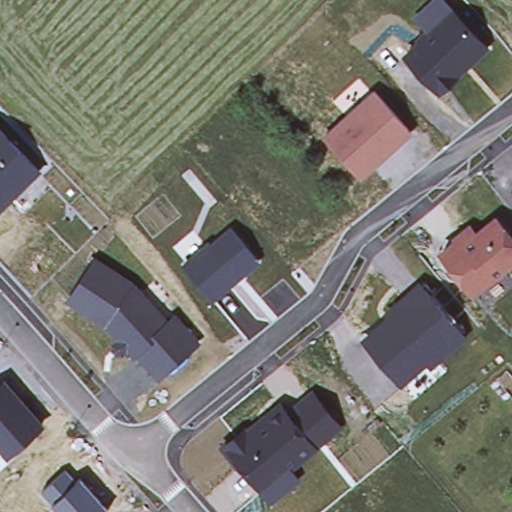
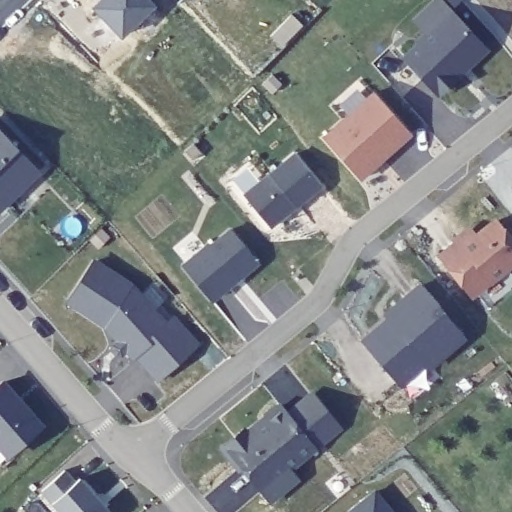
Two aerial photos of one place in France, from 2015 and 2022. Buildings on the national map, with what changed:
new [(156,7),(122,42),(93,11),(104,0),(149,0),(156,7)]
unchanged [(435,0),(441,0),(491,52),(440,97),(400,55),(425,33),(412,19),(435,0)]
new [(302,27),(282,48),(272,38),(292,16),(302,27)]
unchanged [(372,90),(412,136),(357,180),(322,135),(372,90)]
unchanged [(0,212),(0,129),(42,173),(0,212)]
new [(295,152),(322,184),(297,205),(294,202),(287,208),(290,211),(272,226),(245,194),(295,152)]
unchanged [(512,237),(512,267),(474,298),(437,252),(452,241),(448,236),(467,222),(477,232),(495,217),(512,237)]
unchanged [(230,226),(260,264),(212,302),(182,265),(230,226)]
unchanged [(97,256),(133,279),(170,319),(180,313),(202,342),(155,382),(106,329),(67,302),(97,256)]
unchanged [(385,318),(380,315),(419,285),(463,340),(431,369),(426,364),(397,387),(361,337),(385,318)]
unchanged [(0,384),(6,378),(46,425),(8,458),(0,466),(0,384)]
unchanged [(343,422),(317,443),(320,448),(292,470),(300,479),(269,502),(222,445),(279,401),(287,409),(310,390),(343,422)]
unchanged [(42,489),(67,468),(80,478),(82,476),(110,509),(107,512),(61,512),(52,502),(42,489)]
new [(352,512),(376,490),(393,512),(352,512)]

